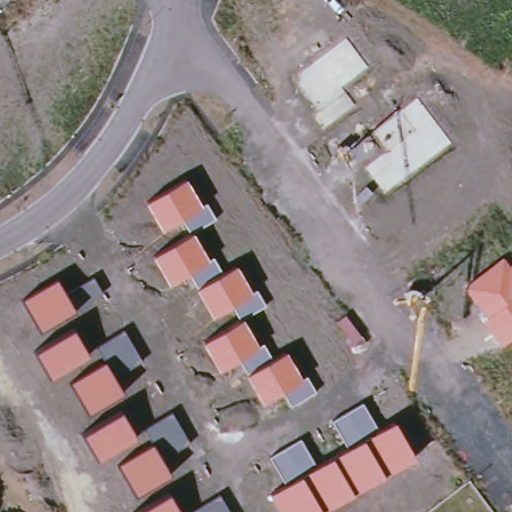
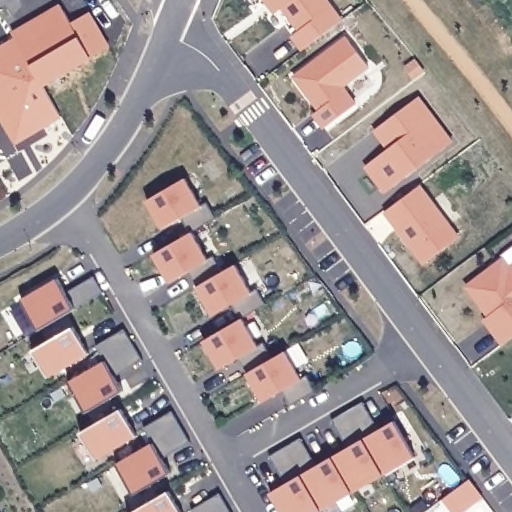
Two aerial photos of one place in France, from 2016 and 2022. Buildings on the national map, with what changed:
new [(266,0),(328,0),(343,20),(304,50),(294,36),(301,30),(283,7),(276,12),(266,0)]
new [(62,5),(73,23),(90,13),(110,47),(44,85),(14,33),(62,5)]
new [(62,119),(11,148),(0,128),(0,43),(14,33),(44,85),(62,119)]
new [(303,73),(348,39),(370,68),(344,88),(357,105),(326,129),(316,115),(321,111),(302,85),(303,73)]
new [(390,150),(376,131),(419,99),(452,144),(387,193),(367,167),(390,150)]
unchanged [(187,178),(202,203),(207,200),(214,213),(189,226),(183,217),(163,228),(147,202),(187,178)]
new [(420,186),(459,238),(425,264),(386,211),(420,186)]
unchanged [(194,232),(208,257),(213,254),(222,270),(196,284),(188,271),(167,283),(152,255),(194,232)]
unchanged [(512,264),(512,337),(501,345),(482,320),(488,316),(465,285),(502,256),(510,265),(512,264)]
unchanged [(237,265),(251,290),(256,288),(263,303),(240,317),(232,303),(213,315),(197,287),(237,265)]
unchanged [(58,278),(66,292),(94,276),(103,292),(41,328),(24,296),(58,278)]
unchanged [(244,319),(258,344),(263,341),(271,356),(249,370),(241,357),(221,369),(204,340),(244,319)]
unchanged [(74,329),(89,354),(51,377),(35,352),(74,329)]
unchanged [(107,361),(98,345),(125,329),(141,358),(113,373),(123,391),(88,411),(70,380),(107,361)]
unchanged [(287,351),(301,377),(307,373),(316,388),(290,403),(282,390),(262,401),(248,374),(287,351)]
unchanged [(269,456),(301,438),(317,464),(349,446),(334,419),(364,402),(381,430),(393,422),(413,456),(317,512),(280,512),(268,491),(285,482),(269,456)]
unchanged [(122,411),(135,435),(95,458),(82,434),(122,411)]
unchanged [(154,444),(145,428),(171,412),(188,441),(159,456),(170,474),(135,492),(118,461),(154,444)]
new [(484,497),(477,503),(464,512),(452,512),(444,500),(463,485),(470,480),(484,497)]
unchanged [(180,512),(134,512),(169,493),(180,512)]
unchanged [(219,494),(230,512),(192,512),(191,510),(219,494)]

